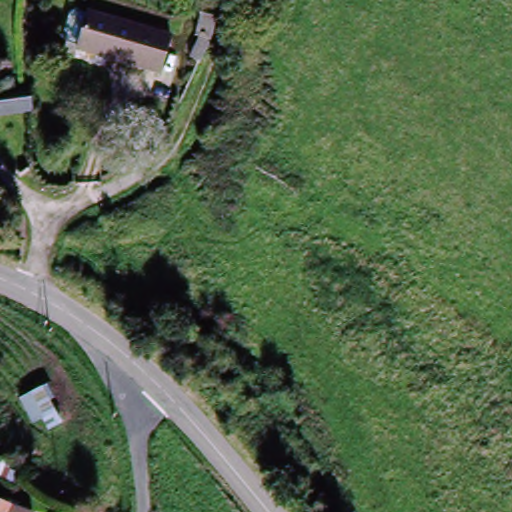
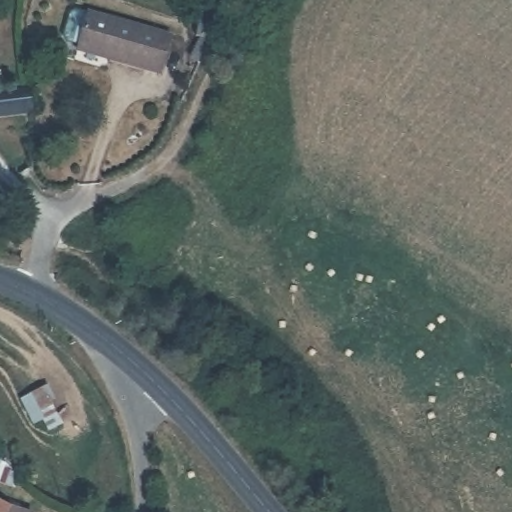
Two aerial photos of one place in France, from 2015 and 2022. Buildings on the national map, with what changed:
unchanged [(79,47),(79,46),(66,43),(63,36),(69,13),(75,10),(88,13),(88,12),(172,35),(161,74),(108,60),(77,52),(79,47)]
unchanged [(200,37),(195,36),(200,11),(216,15),(211,36),(210,39),(200,62),(189,57),(200,37)]
unchanged [(11,114),(0,116),(0,92),(2,92),(17,90),(29,89),(29,91),(31,101),(31,103),(34,111),(30,112),(11,114)]
unchanged [(39,426),(26,403),(47,393),(51,391),(58,401),(53,403),(59,415),(39,426)]
unchanged [(22,491),(0,485),(0,480),(5,460),(26,477),(22,491)]
unchanged [(0,497),(31,508),(30,512),(0,512),(0,497)]

